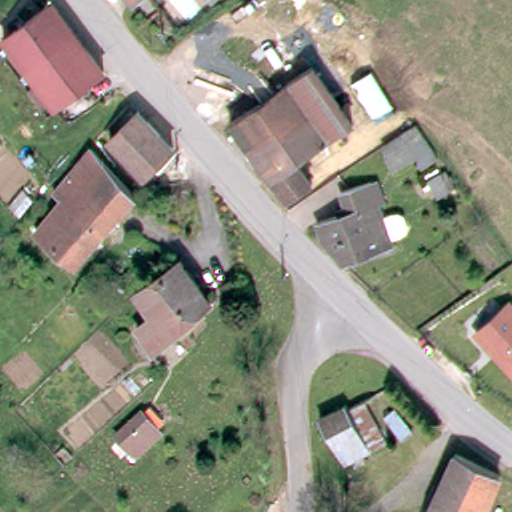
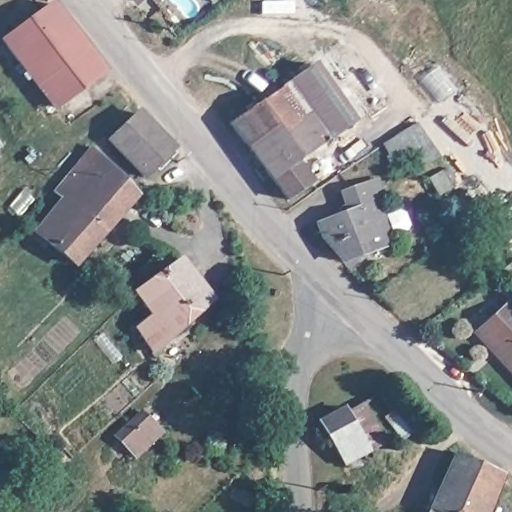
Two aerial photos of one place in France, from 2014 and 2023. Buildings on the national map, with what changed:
unchanged [(53,97),(23,60),(8,40),(55,3),(109,70),(62,107),(53,97)]
unchanged [(232,123),(317,65),(357,123),(348,129),(357,140),(338,152),(330,141),(298,163),(313,182),(293,195),(292,197),(232,123)]
unchanged [(142,114),(175,150),(147,177),(113,141),(142,114)]
unchanged [(420,168),(412,156),(392,169),(384,157),(403,143),(397,135),(410,127),(415,122),(438,156),(433,159),(420,168)]
unchanged [(72,263),(35,231),(61,201),(52,192),(91,147),(133,193),(72,263)]
unchanged [(450,186),(452,189),(440,197),(428,179),(442,171),(444,169),(454,183),(452,185),(450,186)]
unchanged [(400,210),(405,221),(402,231),(390,237),(392,243),(340,259),(320,235),(313,223),(337,215),(340,198),(337,187),(367,176),(372,173),(383,198),(377,200),(380,208),(390,205),(400,210)]
unchanged [(192,254),(219,299),(165,348),(149,323),(165,311),(148,286),(192,254)]
unchanged [(512,375),(475,332),(511,297),(512,299),(512,375)]
unchanged [(347,469),(327,432),(323,426),(347,411),(351,418),(369,407),(390,445),(347,469)]
unchanged [(400,409),(418,436),(407,444),(388,418),(400,409)]
unchanged [(155,432),(130,456),(112,438),(138,413),(155,432)]
unchanged [(507,469),(490,512),(436,512),(462,449),(507,469)]

